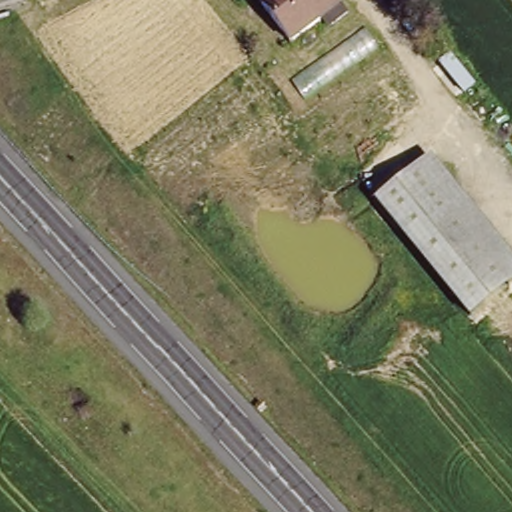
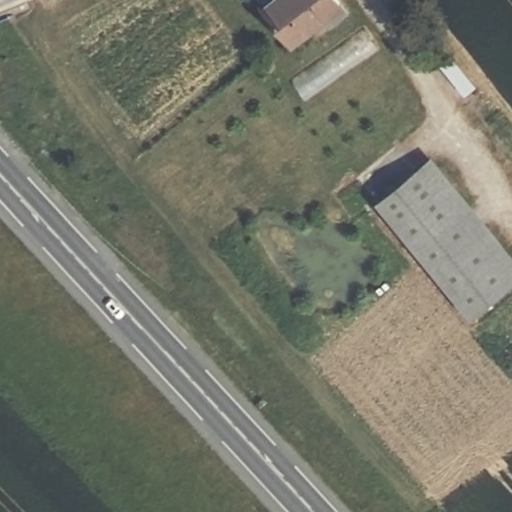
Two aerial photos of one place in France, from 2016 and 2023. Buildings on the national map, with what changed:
unchanged [(346,0),(295,35),(267,0),(345,0),(346,0)]
unchanged [(375,199),(419,164),(432,152),(512,252),(512,282),(472,316),(375,199)]

